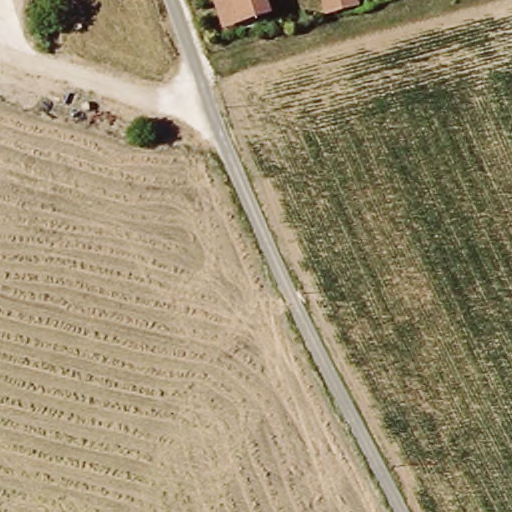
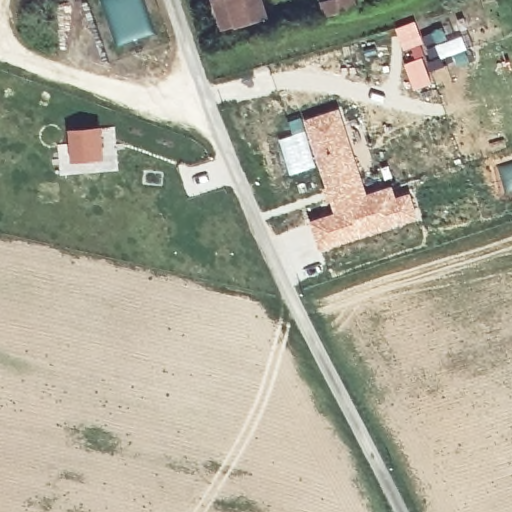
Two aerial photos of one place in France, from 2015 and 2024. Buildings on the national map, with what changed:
demolished [(211,0),(233,0),(234,6),(214,12),(211,0)]
new [(224,25),(217,0),(268,0),(271,10),(224,25)]
unchanged [(357,2),(326,11),(323,0),(356,0),(357,2)]
new [(426,54),(433,82),(413,90),(403,62),(426,54)]
new [(339,106),(368,191),(393,184),(397,195),(411,190),(419,219),(348,241),(321,252),(309,220),(333,211),(317,167),(302,118),(339,106)]
new [(291,134),(287,120),(301,115),(302,118),(317,167),(289,176),(277,139),(291,134)]

